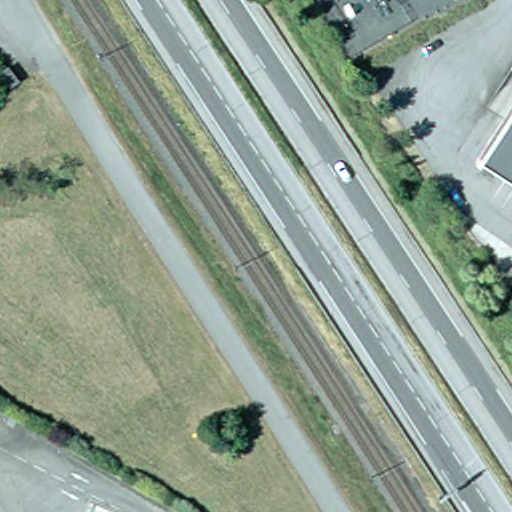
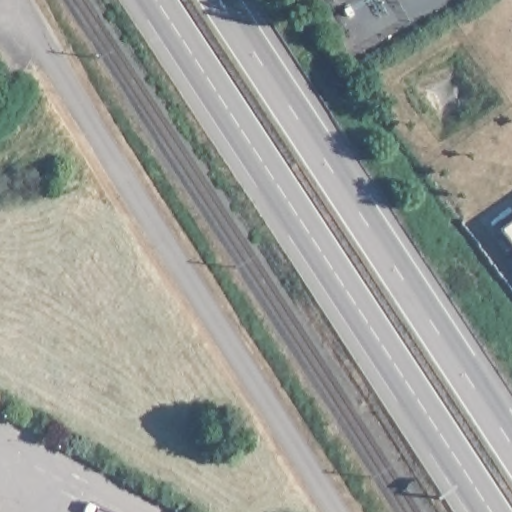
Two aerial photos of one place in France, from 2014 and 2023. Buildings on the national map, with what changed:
unchanged [(8,67),(19,83),(12,88),(0,73),(8,67)]
demolished [(512,119),(512,182),(483,163),(512,119)]
new [(512,243),(499,226),(512,216),(512,243)]

